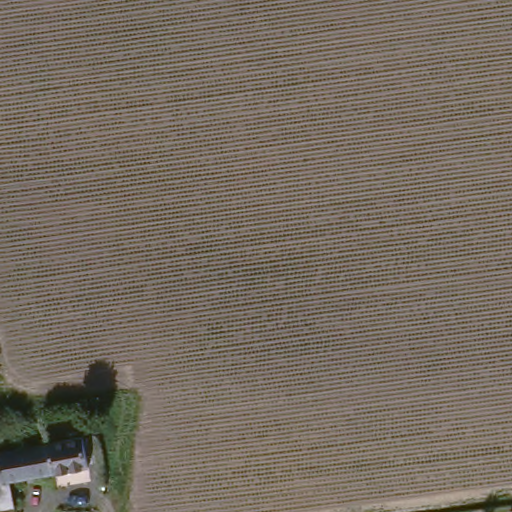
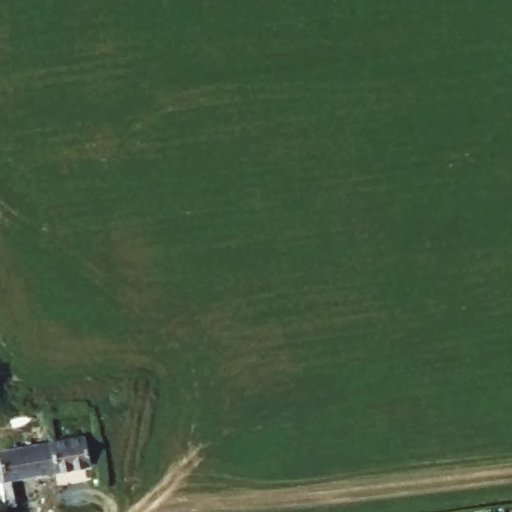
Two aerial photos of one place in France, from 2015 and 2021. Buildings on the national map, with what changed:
unchanged [(47,442),(0,455),(0,433),(43,425),(47,442)]
unchanged [(47,446),(77,436),(87,462),(54,472),(9,485),(13,505),(15,512),(0,512),(0,455),(47,442),(47,446)]

